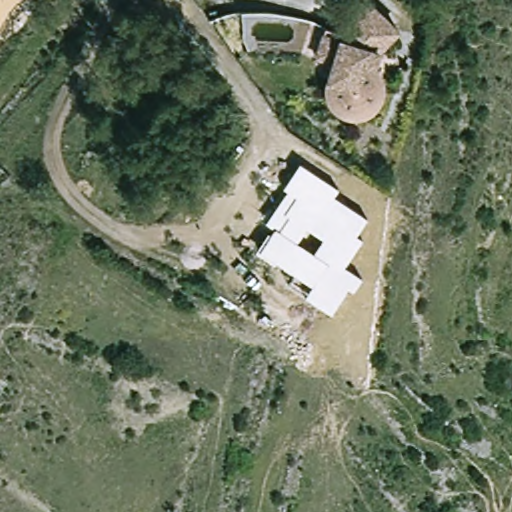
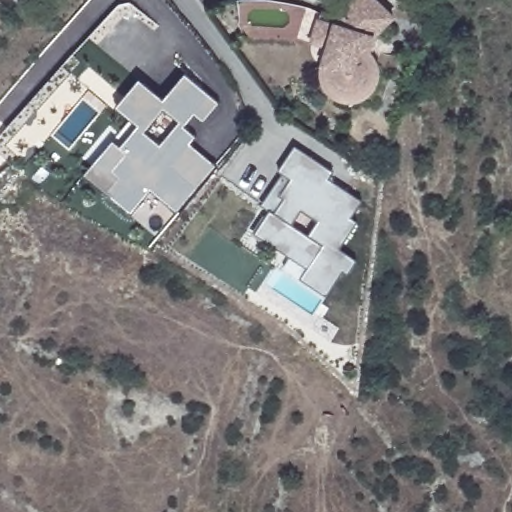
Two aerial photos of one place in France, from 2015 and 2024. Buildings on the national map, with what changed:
unchanged [(314,28),(331,33),(331,26),(357,0),(364,0),(390,25),(369,45),(365,60),(371,70),(374,78),(373,88),(369,97),(363,103),(354,108),(342,110),(328,105),(322,98),(317,87),(317,78),(318,72),(323,55),(307,50),(314,28)]
new [(186,76),(220,105),(204,123),(195,115),(184,128),(197,138),(191,145),(216,167),(177,214),(150,191),(130,216),(84,176),(113,142),(120,148),(137,128),(115,108),(139,81),(164,102),(186,76)]
unchanged [(363,201),(353,218),(359,223),(341,250),(357,262),(349,276),(341,272),(327,297),(284,271),(290,259),(273,247),(270,250),(254,237),(270,214),(261,206),(282,177),(277,174),(296,147),(335,172),(330,180),(363,201)]

